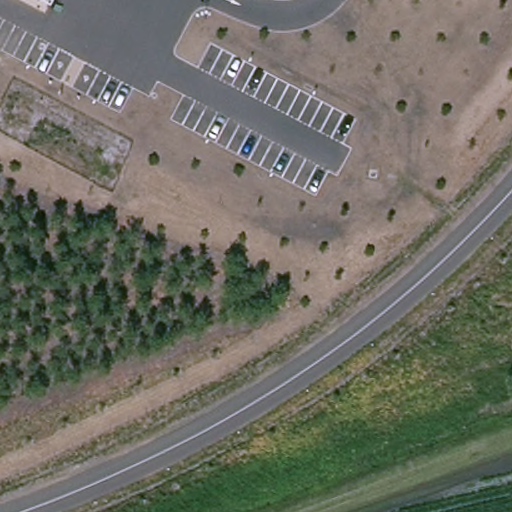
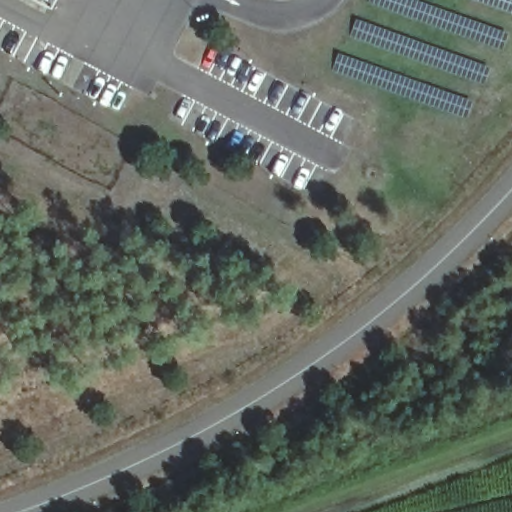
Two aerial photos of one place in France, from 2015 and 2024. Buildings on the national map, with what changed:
unchanged [(56,0),(54,5),(44,0),(56,0)]

